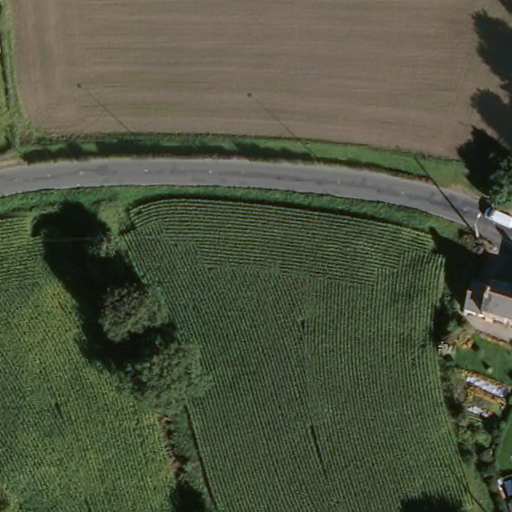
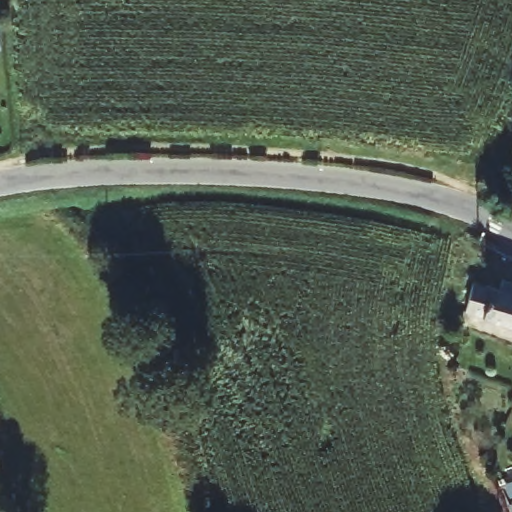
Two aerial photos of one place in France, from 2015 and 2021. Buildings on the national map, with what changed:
unchanged [(2,49),(2,64),(0,65),(0,34),(2,34),(2,49)]
unchanged [(474,315),(470,314),(478,285),(482,287),(504,293),(507,283),(512,284),(512,325),(474,315)]
unchanged [(488,449),(485,457),(478,456),(480,448),(488,449)]
unchanged [(511,507),(512,506),(512,507),(511,507)]

